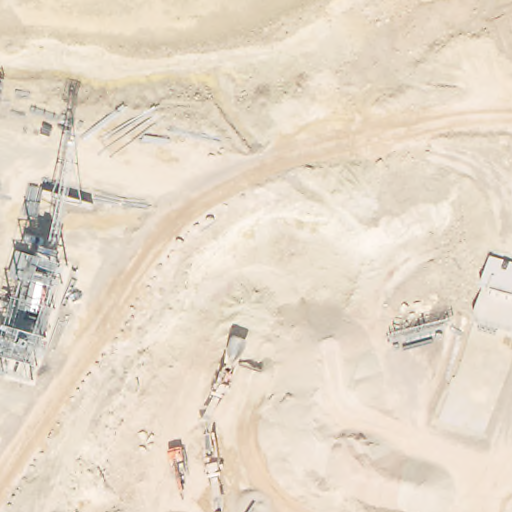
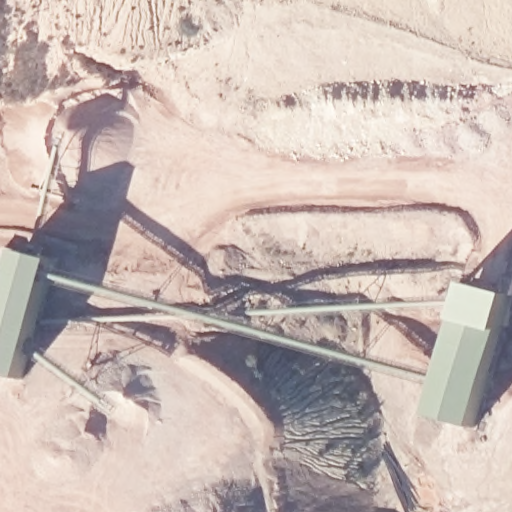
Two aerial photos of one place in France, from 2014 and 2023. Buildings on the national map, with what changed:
new [(0,372),(0,315),(16,251),(54,259),(23,378),(0,372)]
new [(469,285),(512,296),(512,302),(504,332),(476,428),(432,416),(459,322),(469,285)]

